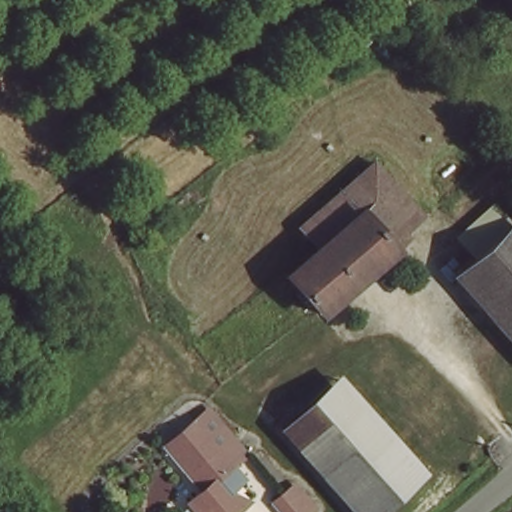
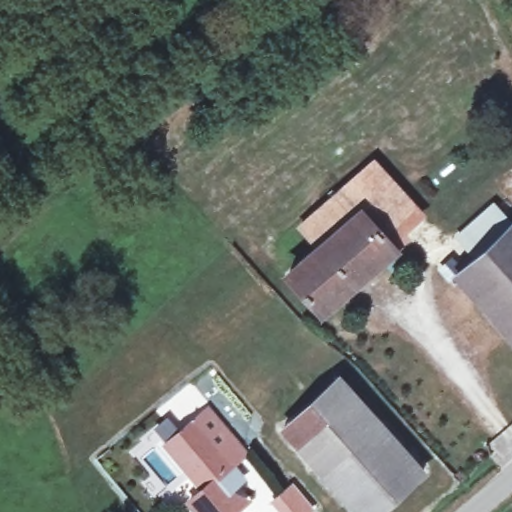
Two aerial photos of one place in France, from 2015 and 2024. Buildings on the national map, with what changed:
unchanged [(419,210),(423,215),(400,235),(371,205),(323,247),(304,226),(377,163),(419,210)]
unchanged [(371,205),(400,235),(404,240),(319,312),(289,277),(323,247),(371,205)]
unchanged [(512,222),(512,336),(465,281),(459,286),(443,270),(470,246),(505,214),(512,222)]
unchanged [(388,512),(354,512),(283,433),(341,382),(425,480),(388,512)]
unchanged [(202,490),(164,445),(195,419),(209,406),(230,432),(247,452),(233,465),(217,478),(202,490)]
unchanged [(239,505),(230,512),(199,512),(190,500),(202,490),(217,478),(239,505)]
unchanged [(284,495),(293,487),(309,506),(302,512),(284,512),(276,501),(284,495)]

